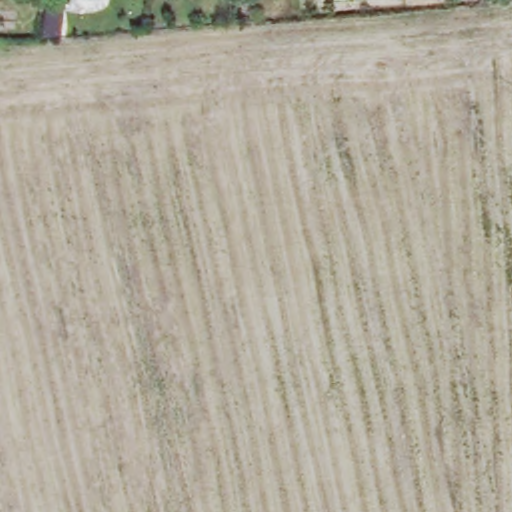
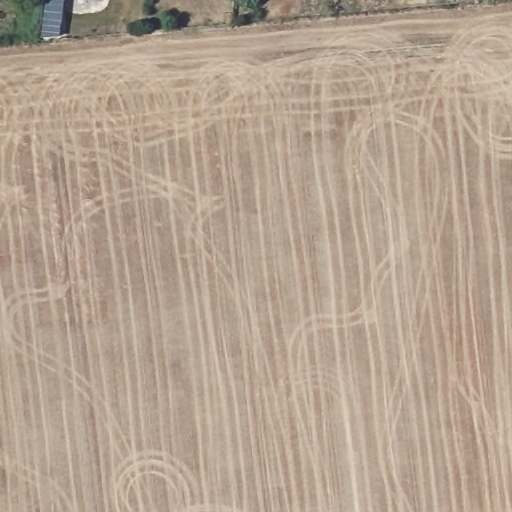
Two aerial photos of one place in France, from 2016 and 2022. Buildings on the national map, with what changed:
[]

